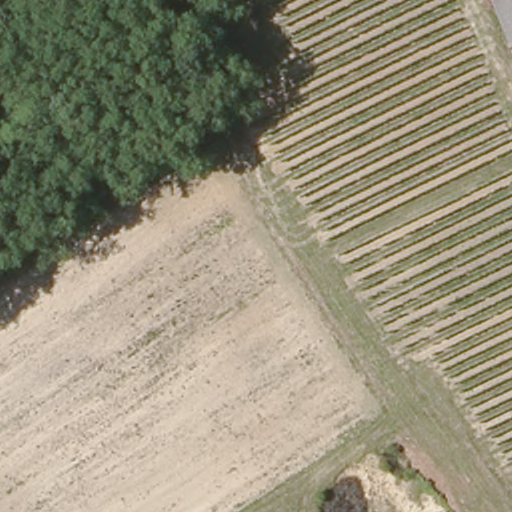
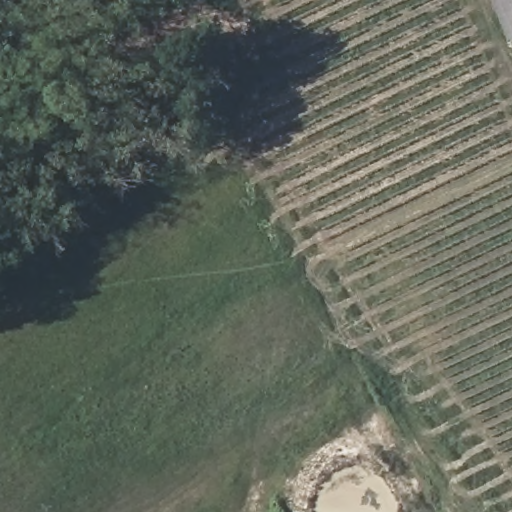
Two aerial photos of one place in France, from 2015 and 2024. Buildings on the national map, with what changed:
unchanged [(512,46),(494,0),(512,0),(512,46)]

